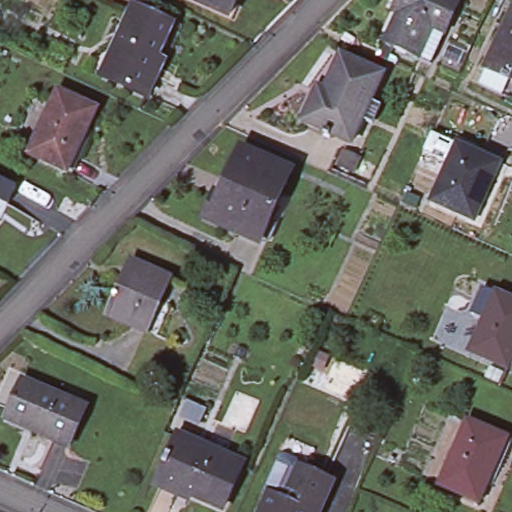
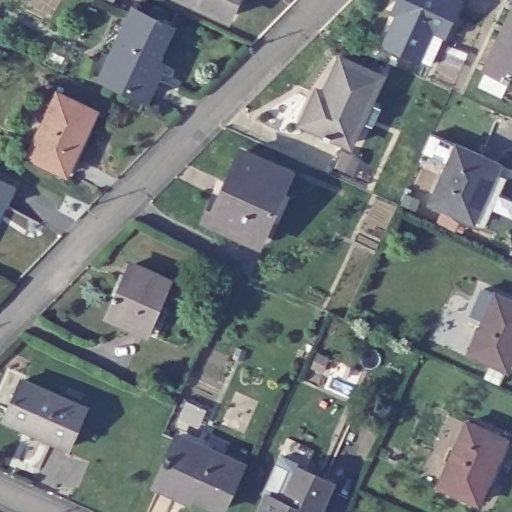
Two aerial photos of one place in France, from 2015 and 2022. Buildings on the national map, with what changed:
unchanged [(204,0),(237,0),(232,11),(204,0)]
unchanged [(400,0),(461,0),(433,62),(388,43),(400,13),(395,10),(400,0)]
unchanged [(100,54),(111,59),(132,11),(173,29),(159,62),(166,65),(151,98),(102,77),(91,72),(100,54)]
unchanged [(485,68),(512,11),(512,79),(485,68)]
unchanged [(380,121),(367,115),(358,137),(337,128),(335,133),(327,129),(329,124),(310,115),(319,94),(327,96),(346,54),(386,72),(375,96),(388,102),(380,121)]
unchanged [(97,109),(69,170),(31,154),(60,93),(97,109)]
unchanged [(200,219),(240,142),(300,169),(258,249),(200,219)]
unchanged [(502,165),(480,220),(433,200),(456,148),(502,165)]
unchanged [(365,156),(359,169),(344,163),(350,150),(365,156)]
unchanged [(8,199),(0,195),(0,173),(16,180),(8,199)]
unchanged [(152,335),(144,332),(106,315),(127,264),(167,279),(157,302),(165,305),(152,335)]
unchanged [(512,296),(512,353),(507,363),(470,347),(496,289),(512,296)]
unchanged [(83,409),(65,449),(30,433),(33,427),(3,413),(20,379),(83,409)]
unchanged [(507,438),(478,501),(442,484),(470,422),(507,438)]
unchanged [(243,463),(223,506),(189,490),(187,493),(175,487),(174,489),(153,480),(175,431),(243,463)]
unchanged [(327,512),(269,512),(272,505),(265,502),(281,467),(287,464),(301,471),(298,476),(335,494),(327,512)]

